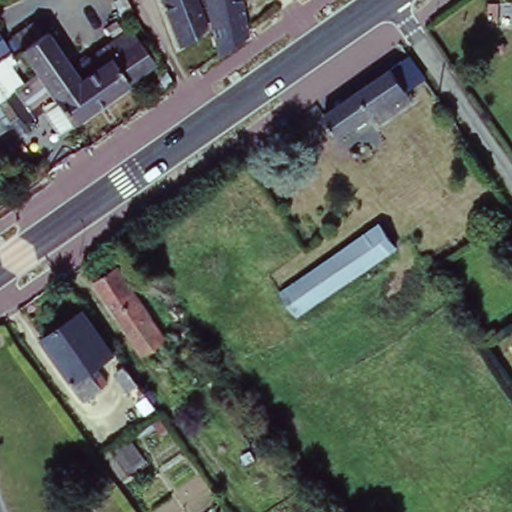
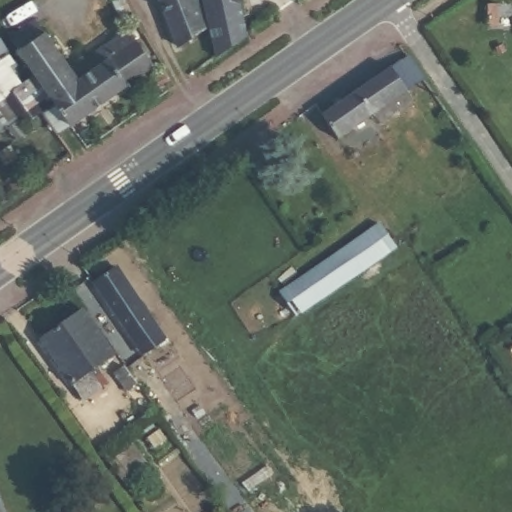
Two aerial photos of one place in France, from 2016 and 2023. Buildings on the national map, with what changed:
unchanged [(205,31),(175,50),(163,0),(198,0),(205,31)]
unchanged [(205,0),(240,0),(245,36),(220,55),(205,0)]
unchanged [(34,19),(42,29),(38,31),(32,35),(28,38),(17,46),(12,50),(11,54),(16,62),(12,65),(22,82),(32,77),(52,106),(19,131),(12,125),(0,134),(0,36),(2,40),(34,19)]
unchanged [(12,50),(28,38),(32,35),(38,31),(66,71),(124,31),(152,68),(68,128),(12,50)]
unchanged [(410,52),(426,76),(407,88),(413,98),(380,120),(374,110),(336,136),(320,113),(410,52)]
unchanged [(278,293),(377,227),(393,249),(294,316),(278,293)]
unchanged [(147,360),(116,318),(93,289),(114,273),(138,301),(169,343),(147,360)]
unchanged [(419,285),(423,290),(418,295),(414,289),(419,285)]
unchanged [(110,352),(90,367),(96,375),(91,380),(97,391),(83,401),(37,341),(78,310),(110,352)]
unchanged [(118,438),(137,466),(123,477),(103,449),(118,438)]

